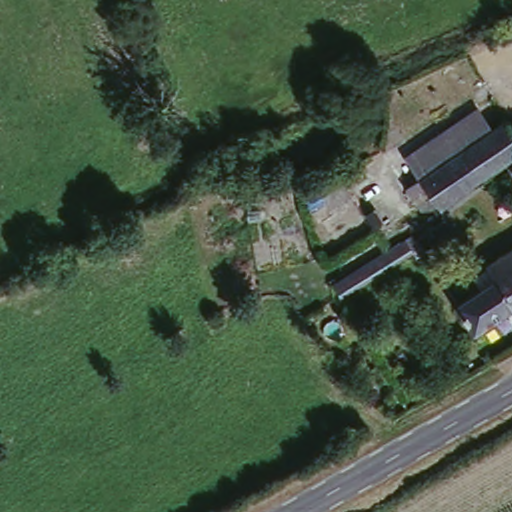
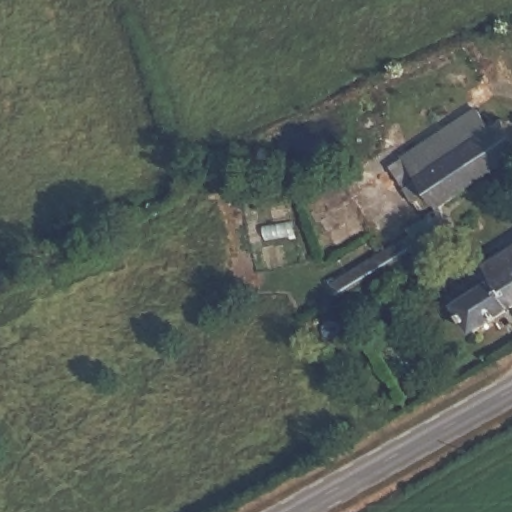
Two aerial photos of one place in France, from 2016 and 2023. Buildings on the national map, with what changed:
unchanged [(508,119),(512,128),(512,157),(424,207),(405,173),(488,126),(482,113),(500,104),(508,119)]
unchanged [(315,284),(417,227),(427,250),(408,260),(404,256),(324,301),(315,284)]
unchanged [(473,295),(499,280),(488,258),(512,245),(512,306),(469,330),(456,305),(448,291),(466,282),(473,295)]

